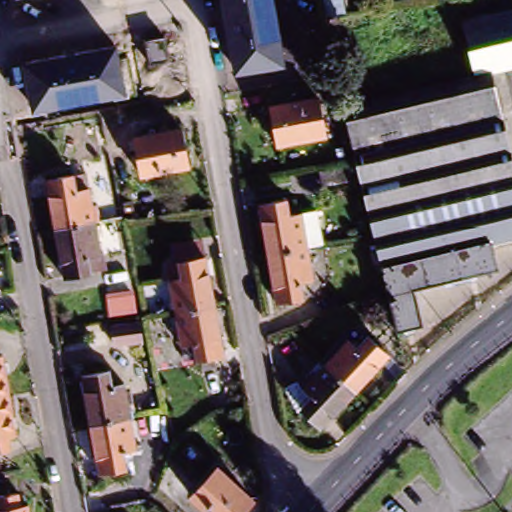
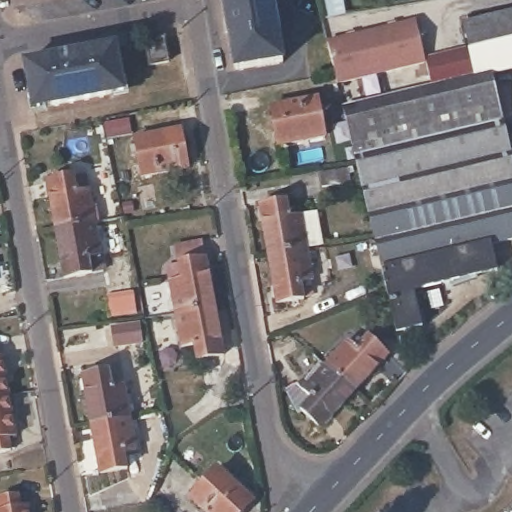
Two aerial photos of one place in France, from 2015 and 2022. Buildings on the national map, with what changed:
unchanged [(220,0),(265,0),(269,31),(274,30),(280,64),(233,72),(220,0)]
unchanged [(329,17),(325,0),(343,0),(346,14),(329,17)]
unchanged [(464,25),(512,14),(512,71),(493,76),(477,78),(464,25)]
new [(477,78),(433,88),(426,62),(337,84),(327,40),(416,20),(426,56),(469,45),(477,78)]
unchanged [(167,36),(171,61),(156,64),(151,39),(167,36)]
unchanged [(89,52),(115,47),(123,90),(31,107),(24,71),(23,64),(89,52)]
unchanged [(374,238),(372,229),(356,164),(344,109),(477,78),(493,76),(512,156),(512,241),(492,246),(498,272),(415,292),(424,329),(398,335),(388,295),(374,238)]
unchanged [(315,98),(321,134),(274,142),(268,106),(315,98)]
unchanged [(178,129),(185,167),(140,175),(136,152),(131,153),(129,141),(134,140),(134,136),(178,129)]
unchanged [(347,167),(350,180),(323,185),(321,171),(347,167)]
unchanged [(71,176),(81,175),(84,192),(91,226),(52,233),(43,181),(71,176)]
unchanged [(258,205),(289,200),(291,214),(319,210),(326,242),(311,245),(266,253),(258,205)]
unchanged [(91,226),(97,261),(86,262),(89,276),(60,281),(52,233),(91,226)]
unchanged [(311,245),(317,279),(304,282),(306,297),(275,302),(266,253),(311,245)]
unchanged [(163,264),(173,263),(201,258),(209,305),(171,311),(165,279),(163,264)]
unchanged [(209,305),(218,354),(208,357),(209,368),(196,371),(194,359),(179,361),(171,311),(209,305)]
unchanged [(325,367),(348,344),(356,351),(367,339),(390,361),(355,396),(325,367)]
unchanged [(2,367),(6,394),(0,395),(0,356),(2,367)]
unchanged [(320,431),(299,410),(309,400),(301,392),(325,367),(355,396),(320,431)]
unchanged [(78,381),(106,375),(108,388),(118,387),(124,421),(86,427),(78,381)]
unchanged [(6,394),(10,415),(13,431),(5,432),(8,445),(0,447),(0,395),(6,394)]
unchanged [(124,421),(129,453),(120,455),(123,473),(95,477),(86,427),(124,421)]
unchanged [(248,503),(240,512),(199,512),(186,500),(213,471),(248,503)]
unchanged [(21,503),(22,512),(1,512),(0,509),(0,507),(21,503)]

